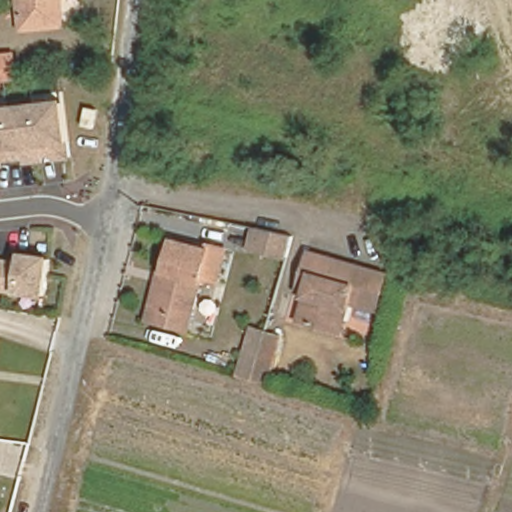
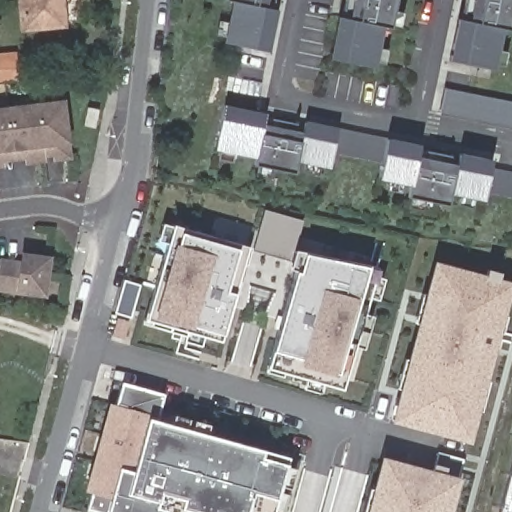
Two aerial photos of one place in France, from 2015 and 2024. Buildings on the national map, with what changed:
unchanged [(60,19),(19,22),(17,0),(58,0),(60,19)]
new [(224,43),(232,2),(225,0),(268,0),(267,6),(278,8),(269,52),(224,43)]
new [(329,58),(337,15),(350,18),(353,0),(395,0),(390,28),(382,26),(374,67),(329,58)]
new [(503,29),(494,70),(449,61),(458,17),(469,19),(472,0),(512,0),(512,21),(510,30),(503,29)]
unchanged [(22,81),(0,83),(0,54),(19,52),(22,81)]
new [(445,87),(512,101),(512,127),(440,112),(445,87)]
unchanged [(67,97),(73,160),(0,169),(0,105),(67,97)]
new [(296,161),(294,174),(254,165),(255,159),(215,151),(225,104),(338,128),(332,153),(329,168),(296,161)]
new [(381,163),(332,153),(338,128),(386,137),(381,163)]
new [(451,193),(448,206),(407,198),(410,186),(377,179),(381,163),(386,137),(492,159),(491,167),(485,192),(484,201),(451,193)]
new [(491,167),(512,171),(512,197),(485,192),(491,167)]
new [(256,248),(267,207),(306,217),(295,258),(256,248)]
new [(157,242),(163,223),(172,225),(173,224),(249,246),(235,293),(223,334),(221,341),(204,336),(201,346),(183,341),(186,331),(171,327),(170,331),(150,325),(152,321),(151,321),(145,319),(167,244),(157,242)]
demolished [(283,237),(277,259),(244,251),(248,230),(283,237)]
demolished [(169,236),(202,245),(203,241),(221,246),(212,279),(196,274),(184,317),(151,307),(162,263),(169,236)]
new [(295,267),(300,248),(310,251),(305,269),(295,267)]
unchanged [(48,299),(0,293),(0,257),(18,259),(21,251),(54,257),(48,299)]
new [(272,369),(275,360),(299,268),(305,269),(310,251),(383,269),(352,386),(291,370),(289,374),(272,369)]
demolished [(302,278),(294,276),(301,252),(378,272),(368,307),(342,300),(333,332),(291,321),(299,291),(302,278)]
new [(418,326),(427,294),(430,294),(439,264),(498,280),(500,273),(511,276),(509,283),(512,284),(512,290),(505,315),(509,316),(505,333),(501,332),(471,440),(396,419),(404,389),(401,388),(408,358),(412,360),(421,327),(418,326)]
new [(376,293),(381,276),(390,278),(386,296),(376,293)]
new [(127,279),(144,284),(134,318),(118,314),(127,279)]
demolished [(248,325),(280,334),(267,382),(235,374),(248,325)]
new [(364,343),(368,325),(377,327),(373,345),(364,343)]
new [(311,385),(313,376),(330,380),(328,390),(311,385)]
new [(170,512),(107,512),(90,507),(125,380),(167,392),(160,418),(170,421),(172,411),(186,415),(184,425),(195,428),(197,418),(212,422),(209,432),(292,454),(289,463),(299,466),(293,486),(284,483),(282,490),(291,493),(286,512),(281,512),(277,510),(276,512),(206,512),(172,503),(170,512)]
new [(381,488),(390,459),(465,479),(456,510),(460,511),(460,512),(370,512),(377,486),(381,488)]
new [(512,512),(498,512),(512,460),(512,512)]

